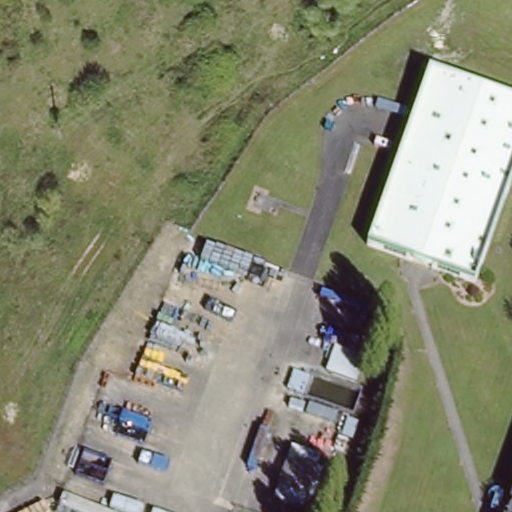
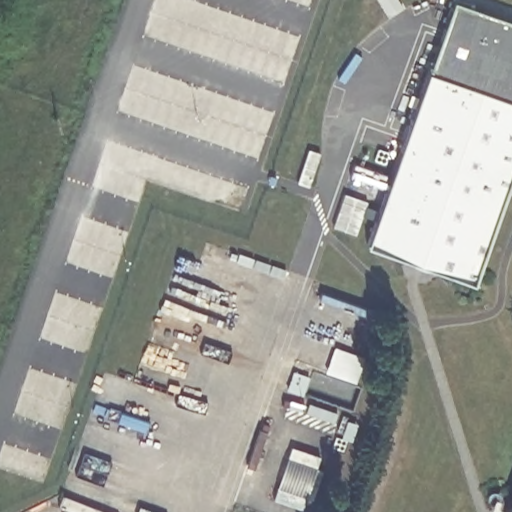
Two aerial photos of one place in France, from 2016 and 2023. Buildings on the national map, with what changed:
new [(429,72),(455,0),(456,0),(512,20),(512,100),(429,72)]
unchanged [(477,282),(369,245),(397,163),(405,140),(429,72),(512,100),(512,180),(477,282)]
unchanged [(512,506),(512,512),(510,512),(512,506)]

